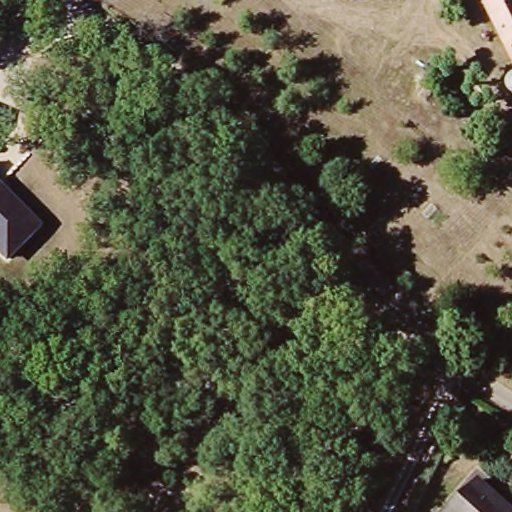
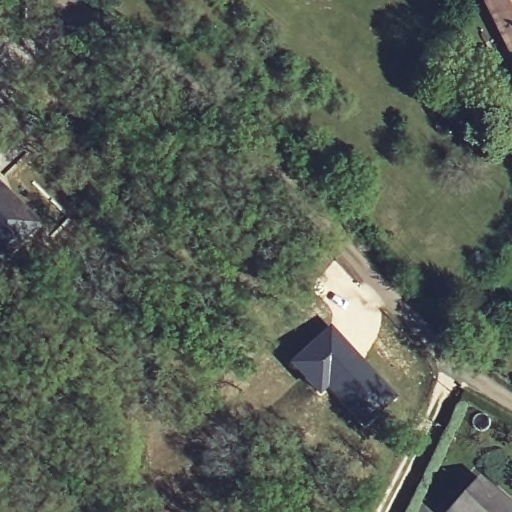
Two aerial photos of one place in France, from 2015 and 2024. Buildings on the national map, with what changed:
unchanged [(476,0),(512,0),(512,71),(476,0)]
unchanged [(512,77),(512,92),(506,81),(512,77)]
unchanged [(5,260),(0,256),(0,183),(41,224),(5,260)]
new [(327,327),(396,398),(362,429),(326,393),(321,398),(287,365),(327,327)]
unchanged [(512,506),(512,512),(440,512),(474,471),(512,506)]

